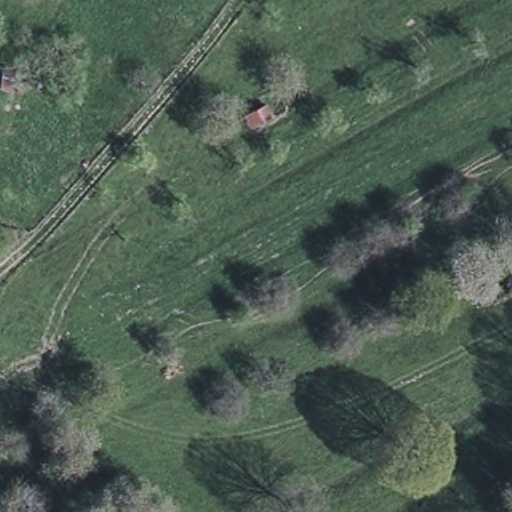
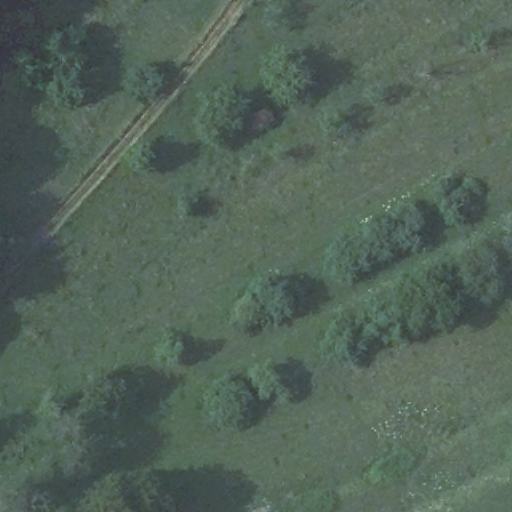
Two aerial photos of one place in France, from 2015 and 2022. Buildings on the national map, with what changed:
unchanged [(277,98),(285,112),(249,131),(243,119),(277,98)]

